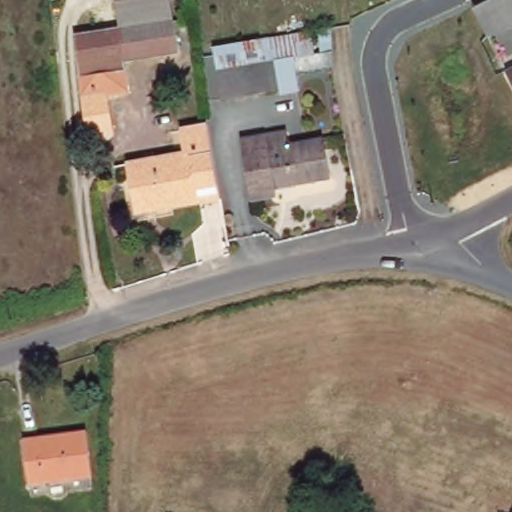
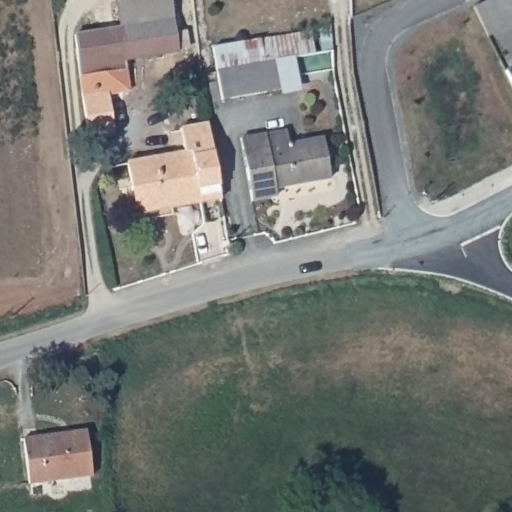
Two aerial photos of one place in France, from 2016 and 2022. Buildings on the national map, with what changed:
unchanged [(171,0),(172,16),(122,24),(118,0),(171,0)]
unchanged [(512,0),(512,23),(488,34),(477,5),(489,0),(512,0)]
unchanged [(107,92),(113,130),(88,134),(78,72),(74,31),(122,24),(172,16),(178,50),(124,59),(125,67),(129,89),(107,92)]
unchanged [(325,68),(292,73),(289,55),(270,58),(214,68),(210,45),(288,31),(293,54),(322,49),(325,68)]
unchanged [(214,68),(270,58),(275,87),(217,97),(212,68),(214,68)]
unchanged [(512,85),(506,73),(512,70),(512,85)]
unchanged [(183,153),(179,130),(206,125),(219,199),(197,203),(196,196),(161,202),(162,209),(135,214),(126,163),(183,153)]
unchanged [(289,141),(322,136),(330,178),(275,187),(276,195),(252,199),(243,146),(242,136),(263,132),(287,128),(289,141)]
unchanged [(87,439),(90,479),(28,484),(25,442),(87,439)]

